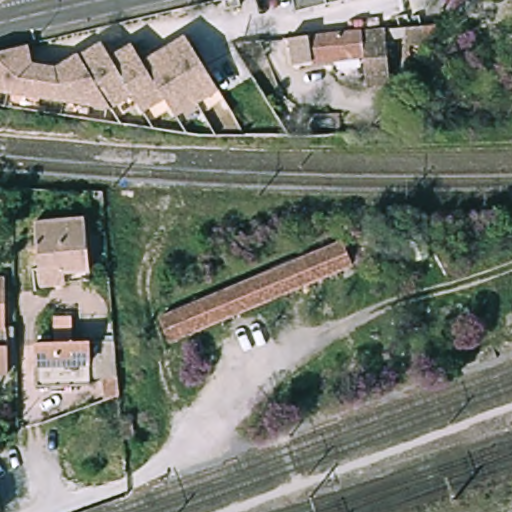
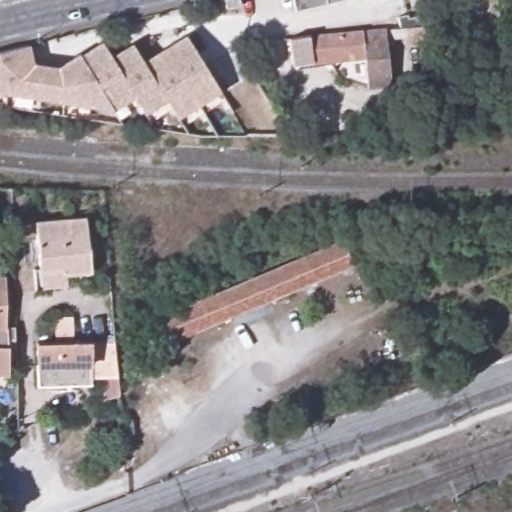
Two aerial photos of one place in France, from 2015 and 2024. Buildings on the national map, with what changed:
unchanged [(230,0),(243,0),(230,3),(230,0)]
unchanged [(292,0),(345,0),(295,11),(292,0)]
unchanged [(313,36),(386,29),(390,29),(395,84),(371,87),(368,61),(293,68),(290,39),(313,36)]
unchanged [(26,51),(31,70),(56,74),(78,60),(80,62),(101,48),(110,62),(131,49),(143,66),(185,39),(219,91),(177,119),(166,101),(155,109),(145,116),(133,99),(113,112),(0,96),(0,58),(26,51)]
unchanged [(40,274),(35,222),(85,218),(90,280),(63,283),(40,285),(40,274)]
unchanged [(353,266),(171,342),(159,314),(341,238),(353,266)]
unchanged [(6,279),(5,289),(5,327),(16,327),(17,373),(0,373),(0,279),(6,279)]
unchanged [(111,360),(112,364),(114,394),(98,399),(96,378),(87,379),(87,386),(30,387),(30,343),(108,341),(109,351),(110,358),(110,359),(111,360)]

